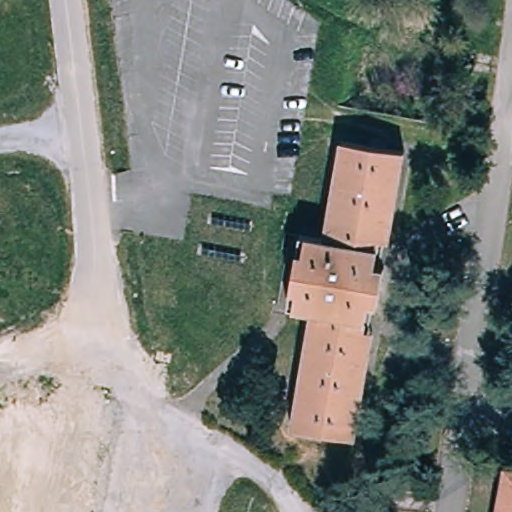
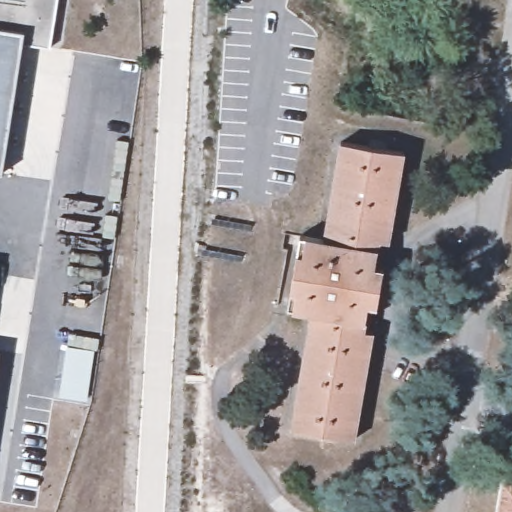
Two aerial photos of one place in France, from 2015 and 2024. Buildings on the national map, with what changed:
new [(21,42),(2,173),(0,173),(0,0),(58,0),(51,47),(21,42)]
unchanged [(360,441),(293,431),(311,314),(281,305),(291,237),(323,241),(336,143),(405,153),(360,441)]
new [(66,347),(94,350),(88,399),(60,395),(66,347)]
unchanged [(507,477),(512,478),(512,512),(502,512),(507,477)]
demolished [(0,499),(20,503),(19,512),(0,512),(0,499)]

